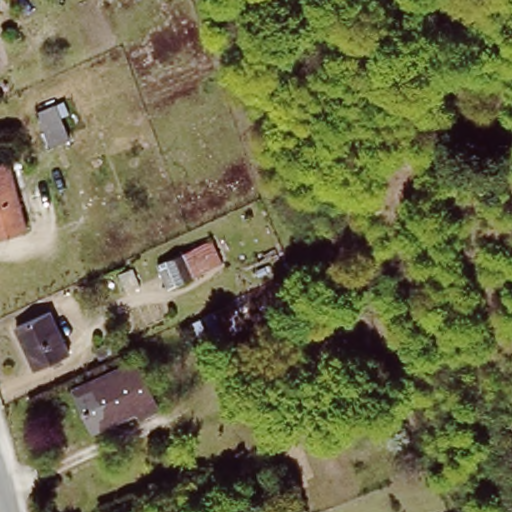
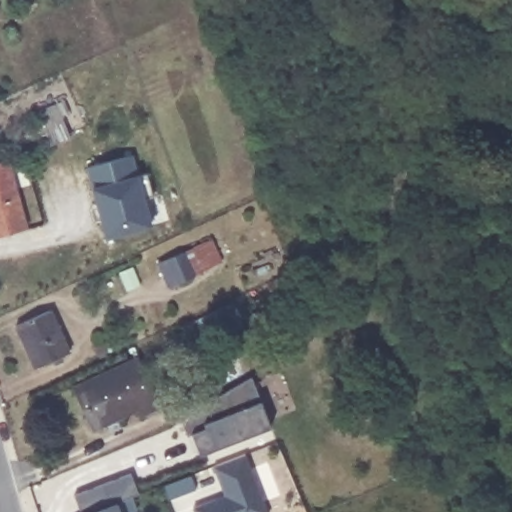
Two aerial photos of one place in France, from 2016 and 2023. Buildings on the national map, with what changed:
unchanged [(50,83),(75,139),(58,147),(33,90),(50,83)]
new [(106,238),(92,187),(85,167),(132,154),(138,174),(153,225),(106,238)]
unchanged [(10,158),(30,227),(0,236),(0,160),(10,158)]
unchanged [(39,164),(42,180),(22,185),(18,169),(39,164)]
unchanged [(210,239),(220,264),(167,289),(155,264),(210,239)]
unchanged [(52,304),(70,347),(35,361),(17,318),(52,304)]
unchanged [(202,310),(212,335),(190,346),(180,320),(202,310)]
unchanged [(136,363),(157,409),(140,418),(137,409),(95,430),(79,390),(136,363)]
new [(200,454),(192,432),(187,434),(180,419),(252,376),(262,402),(270,428),(200,454)]
new [(419,446),(425,461),(418,464),(413,449),(419,446)]
new [(268,512),(195,512),(193,508),(225,496),(214,466),(245,454),(268,512)]
new [(74,494),(130,472),(140,494),(133,497),(137,506),(132,508),(134,512),(82,512),(74,494)]

